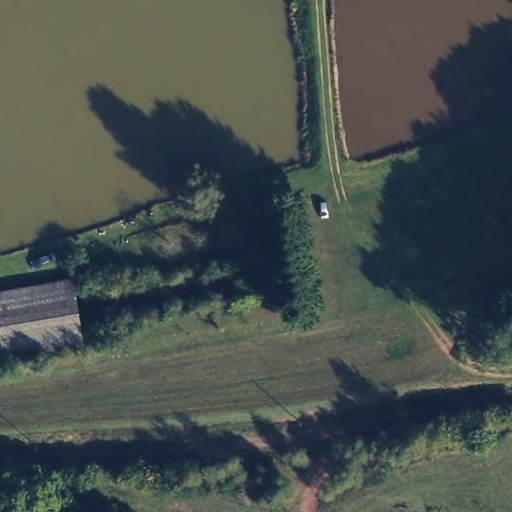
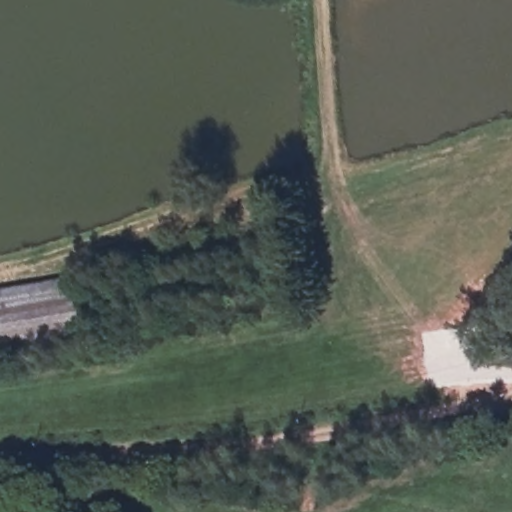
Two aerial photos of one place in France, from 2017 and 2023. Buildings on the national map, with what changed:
unchanged [(80,338),(0,352),(0,285),(72,272),(80,338)]
unchanged [(21,512),(23,509),(28,512),(21,512)]

